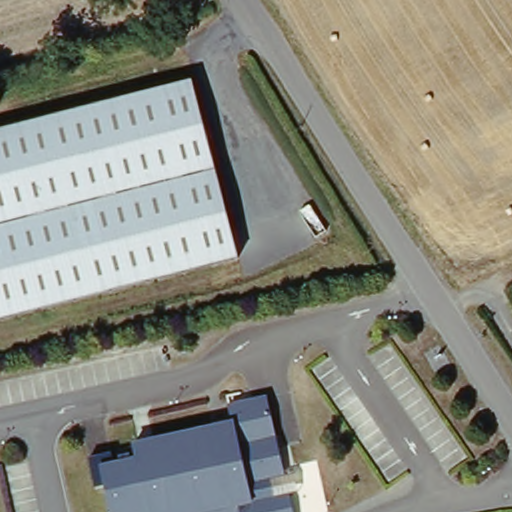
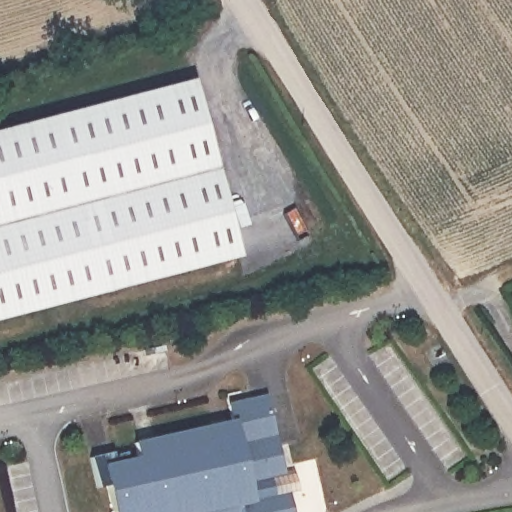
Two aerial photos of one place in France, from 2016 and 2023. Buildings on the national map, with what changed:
unchanged [(196,81),(244,261),(0,324),(0,133),(196,81)]
unchanged [(291,495),(295,512),(112,512),(102,471),(137,463),(136,448),(233,424),(230,408),(266,399),(286,478),(297,474),(301,492),(291,495)]

